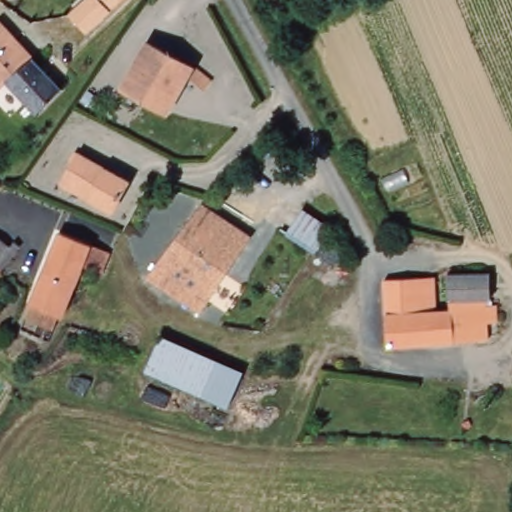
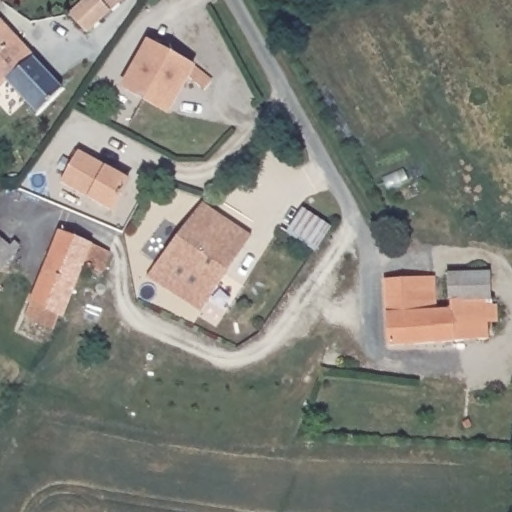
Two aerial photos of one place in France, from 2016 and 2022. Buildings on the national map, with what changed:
unchanged [(87,32),(70,14),(84,0),(121,0),(87,32)]
unchanged [(35,113),(7,84),(0,89),(0,25),(61,89),(35,113)]
unchanged [(191,69),(210,83),(202,92),(185,79),(166,115),(121,87),(146,41),(191,69)]
unchanged [(131,183),(115,213),(63,184),(80,155),(131,183)]
unchanged [(200,308),(149,273),(200,197),(252,232),(200,308)]
unchanged [(301,203),(330,224),(315,246),(289,227),(301,203)]
unchanged [(64,311),(59,309),(52,325),(24,312),(59,227),(110,249),(102,269),(82,262),(64,311)]
unchanged [(0,273),(0,241),(5,245),(7,243),(17,249),(0,273)]
unchanged [(436,311),(448,310),(446,274),(486,272),(488,302),(498,302),(497,321),(487,322),(488,336),(435,344),(432,344),(388,346),(385,278),(434,276),(436,311)]
demolished [(246,366),(226,406),(145,369),(165,329),(246,366)]

